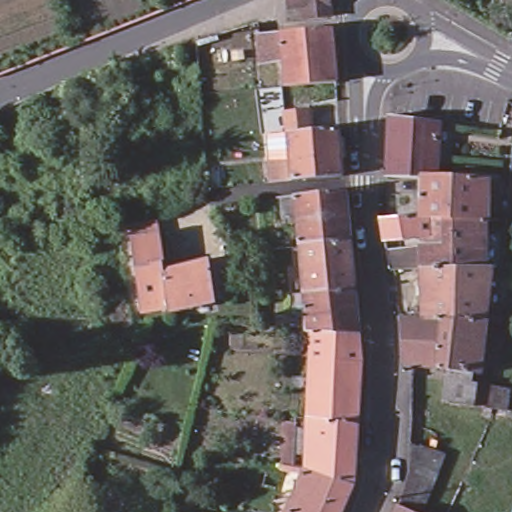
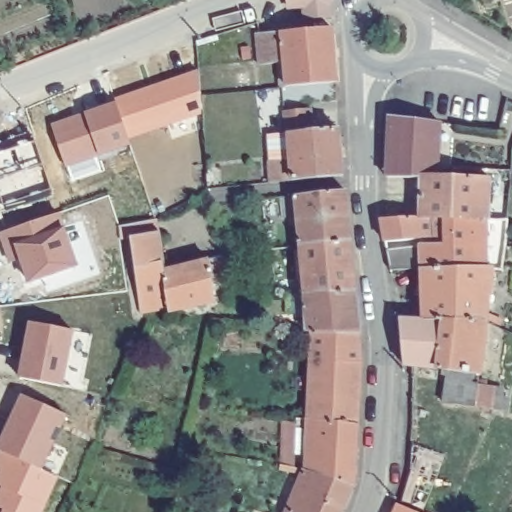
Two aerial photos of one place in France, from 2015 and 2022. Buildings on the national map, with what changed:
unchanged [(291,0),(301,0),(302,5),(292,6),(291,0)]
unchanged [(305,0),(330,0),(332,18),(307,20),(305,0)]
unchanged [(288,81),(287,64),(262,66),(259,34),(285,32),(334,28),(340,85),(289,89),(279,89),(279,82),(288,81)]
new [(149,92),(149,94),(154,92),(154,90),(200,74),(204,115),(130,140),(119,106),(117,103),(149,92)]
new [(87,117),(119,106),(130,140),(132,146),(67,169),(54,129),(76,121),(87,117)]
unchanged [(292,114),(317,112),(318,132),(345,129),(350,178),(302,182),(280,184),(275,141),(270,142),(270,137),(275,136),(293,134),(292,114)]
unchanged [(388,119),(436,123),(432,165),(432,174),(432,177),(417,178),(383,180),(388,119)]
new [(54,197),(5,215),(0,202),(0,152),(35,139),(54,197)]
unchanged [(390,287),(387,271),(384,250),(407,248),(407,266),(420,266),(420,247),(419,247),(421,238),(383,243),(380,220),(416,217),(417,178),(432,177),(432,174),(487,178),(487,220),(506,220),(505,232),(482,231),(484,237),(488,263),(494,262),(494,269),(487,319),(442,321),(419,322),(420,286),(390,287)]
unchanged [(302,245),(302,244),(300,226),(291,227),(290,218),(284,219),(283,198),(299,197),(349,192),(353,243),(302,245)]
new [(10,253),(4,236),(62,216),(80,268),(32,284),(25,262),(15,265),(10,253)]
unchanged [(141,314),(132,238),(162,234),(167,270),(170,311),(141,314)]
unchanged [(312,360),(313,337),(305,337),(305,329),(310,329),(307,299),(300,300),(300,293),(307,292),(302,245),(353,243),(357,292),(362,334),(364,357),(364,366),(312,360)]
unchanged [(229,256),(233,292),(217,294),(219,310),(172,314),(170,314),(170,311),(167,270),(203,262),(214,260),(229,256)]
unchanged [(487,321),(481,373),(445,370),(439,370),(442,321),(487,319),(487,321)]
unchanged [(439,370),(413,367),(403,366),(397,324),(409,323),(419,322),(442,321),(439,370)]
new [(30,346),(35,325),(76,333),(65,388),(24,380),(27,361),(30,346)]
unchanged [(360,424),(310,417),(312,360),(364,366),(360,424)]
unchanged [(477,409),(444,406),(445,370),(481,373),(477,409)]
new [(65,414),(40,468),(0,450),(0,439),(22,393),(65,414)]
unchanged [(494,409),(492,414),(487,413),(487,408),(494,409)]
unchanged [(357,484),(307,471),(310,429),(297,430),(296,468),(295,468),(283,466),(284,422),(297,424),(297,419),(310,418),(310,417),(360,424),(358,481),(357,484)]
unchanged [(412,444),(445,458),(424,512),(413,512),(397,503),(412,469),(412,444)]
new [(57,478),(42,512),(2,512),(3,509),(0,508),(0,490),(2,486),(0,486),(0,471),(0,469),(0,450),(40,468),(57,478)]
unchanged [(357,484),(345,512),(290,512),(307,471),(357,484)]
unchanged [(413,512),(392,512),(397,503),(413,512)]

